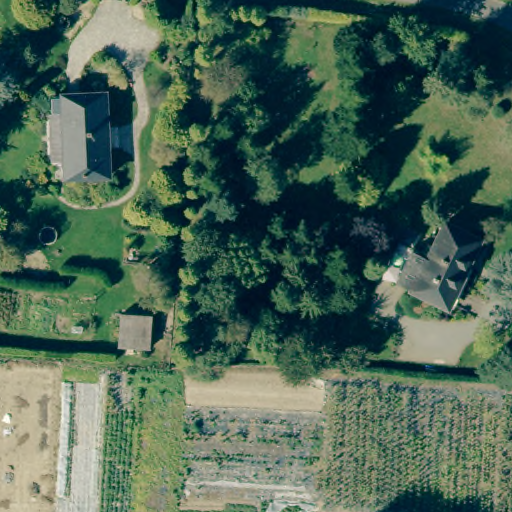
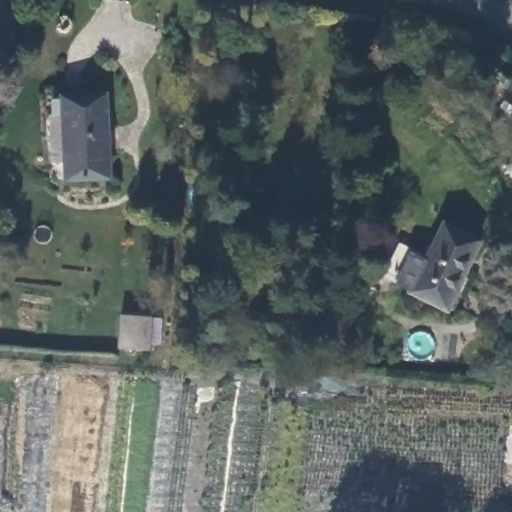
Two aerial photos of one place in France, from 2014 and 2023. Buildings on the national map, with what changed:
unchanged [(114,95),(114,179),(55,178),(56,96),(114,95)]
unchanged [(432,261),(449,226),(485,243),(468,281),(464,279),(449,310),(387,282),(403,248),(432,261)]
unchanged [(127,315),(156,318),(152,348),(124,345),(127,315)]

